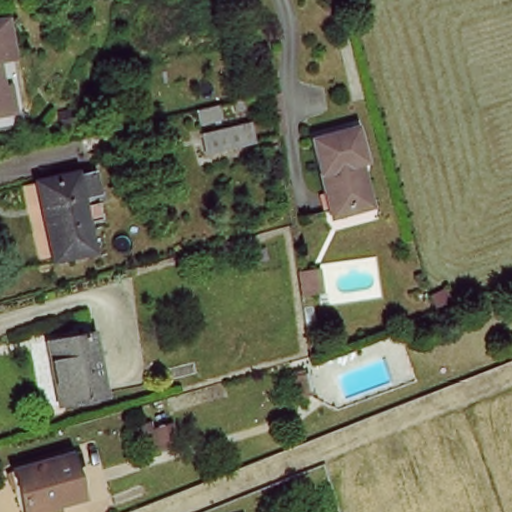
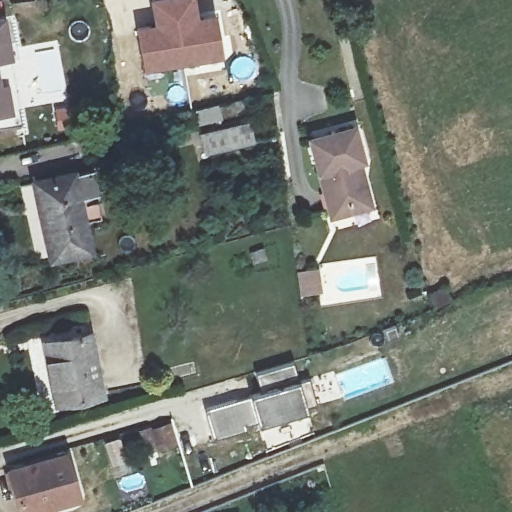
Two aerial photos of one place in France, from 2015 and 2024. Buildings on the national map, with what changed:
new [(153,23),(149,0),(195,0),(198,16),(216,13),(223,56),(143,72),(135,27),(153,23)]
unchanged [(11,28),(15,49),(0,49),(0,16),(9,15),(11,28)]
unchanged [(25,124),(0,127),(0,61),(5,105),(21,103),(25,124)]
unchanged [(203,151),(199,133),(249,122),(253,140),(203,151)]
unchanged [(356,123),(383,207),(331,221),(313,138),(356,123)]
unchanged [(51,265),(38,180),(76,173),(78,178),(94,175),(98,195),(83,198),(92,257),(51,265)]
unchanged [(62,401),(51,337),(99,325),(111,391),(62,401)]
new [(261,391),(253,372),(293,362),(299,381),(309,377),(317,403),(307,407),(308,410),(215,440),(206,408),(261,391)]
unchanged [(90,507),(72,512),(19,512),(7,468),(70,451),(90,507)]

